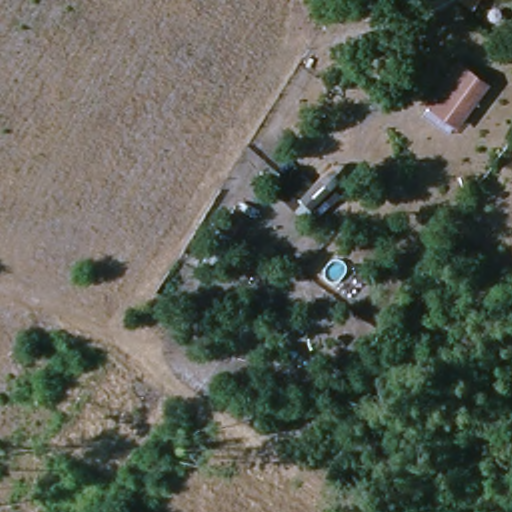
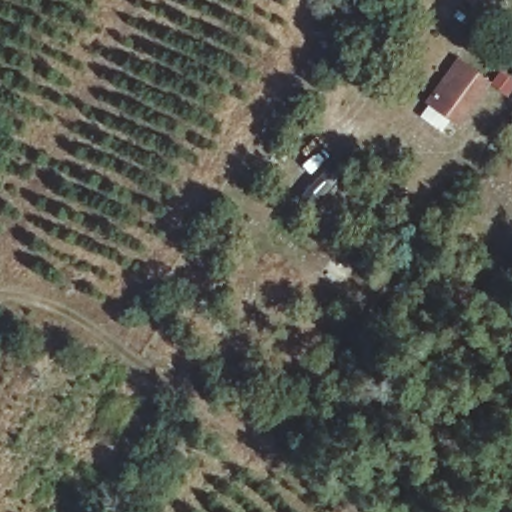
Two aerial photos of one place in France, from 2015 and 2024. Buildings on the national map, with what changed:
unchanged [(464,5),(466,0),(483,0),(481,2),(476,11),(464,5)]
unchanged [(424,93),(453,56),(493,86),(461,125),(424,93)]

